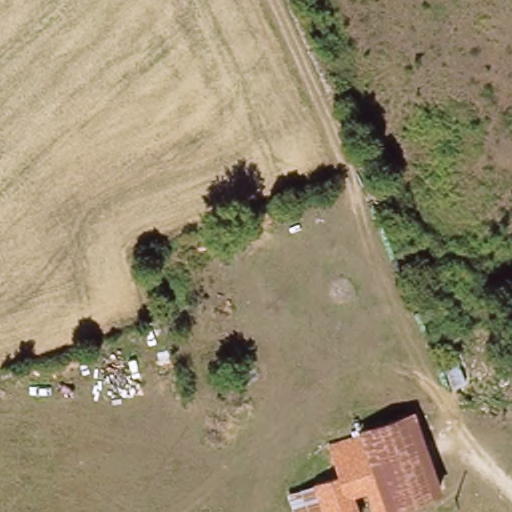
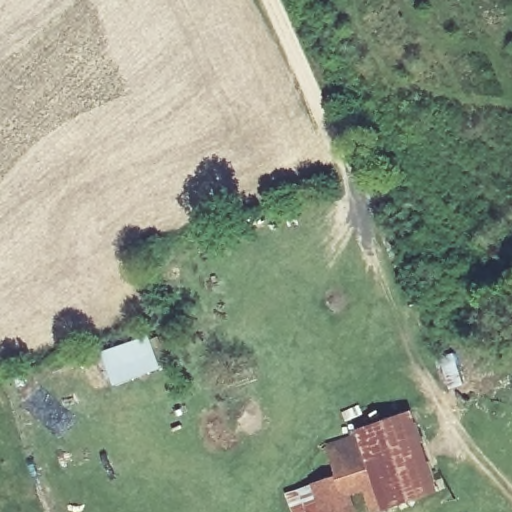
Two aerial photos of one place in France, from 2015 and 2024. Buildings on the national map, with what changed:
new [(164,366),(117,383),(102,350),(151,332),(164,366)]
unchanged [(443,479),(378,503),(373,488),(353,433),(351,427),(406,403),(443,479)]
unchanged [(373,488),(350,498),(356,512),(325,512),(319,495),(312,476),(334,468),(327,445),(353,433),(373,488)]
unchanged [(301,486),(306,498),(319,495),(325,512),(292,512),(284,491),(301,486)]

